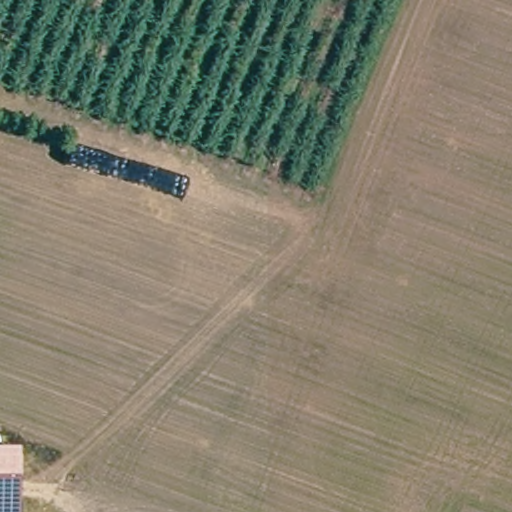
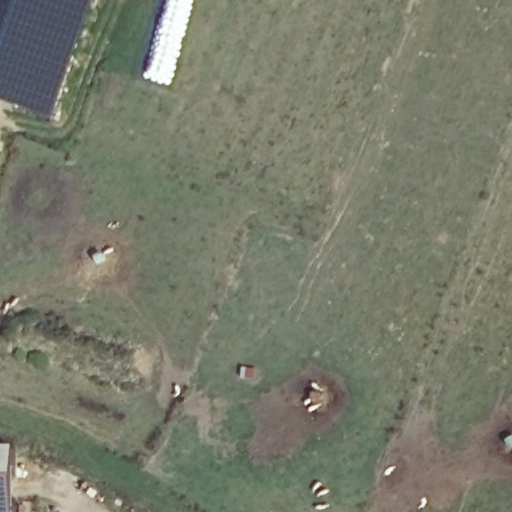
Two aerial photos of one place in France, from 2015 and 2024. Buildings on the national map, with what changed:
new [(60,121),(0,101),(0,0),(100,0),(60,121)]
unchanged [(17,512),(0,512),(0,447),(18,447),(17,512)]

